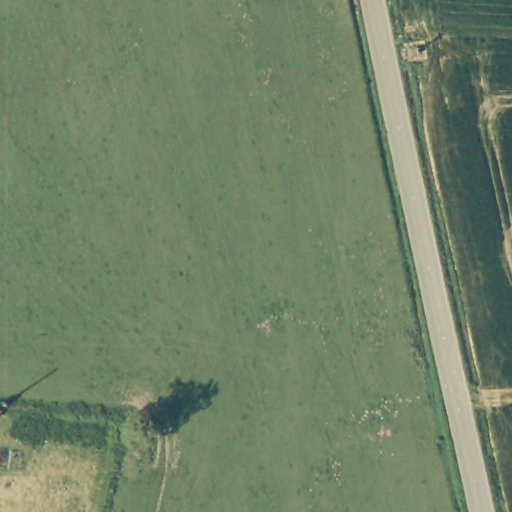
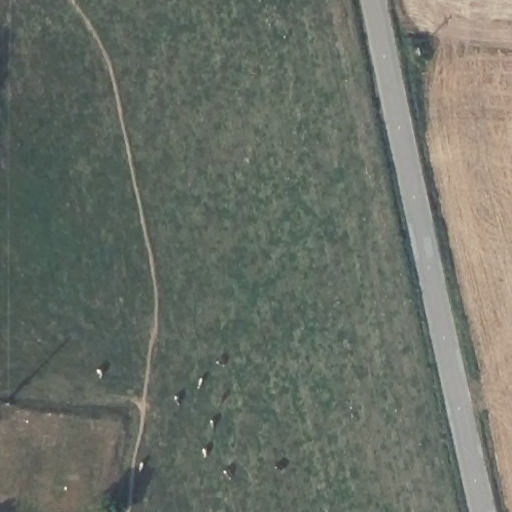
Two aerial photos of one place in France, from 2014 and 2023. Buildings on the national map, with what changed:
[]

